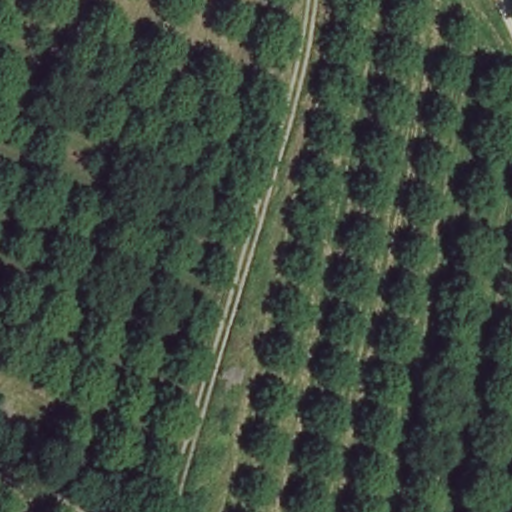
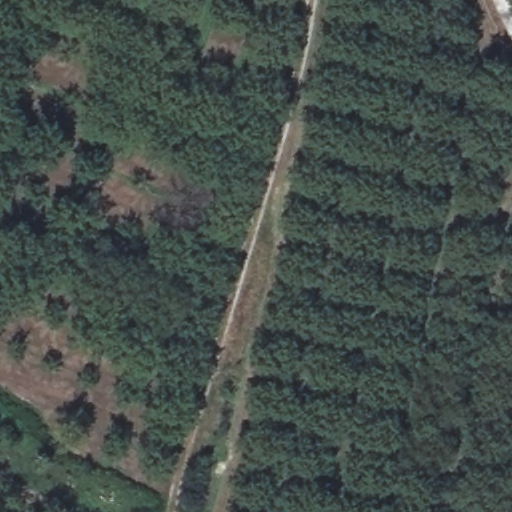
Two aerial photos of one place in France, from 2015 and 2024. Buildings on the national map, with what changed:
[]

